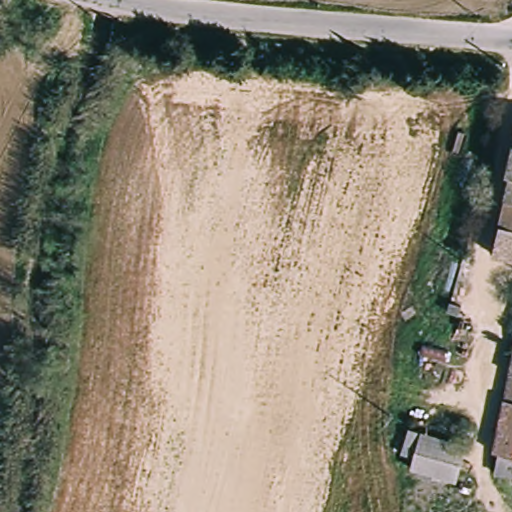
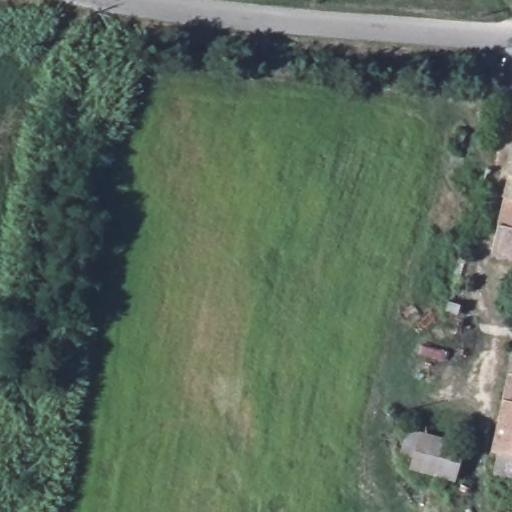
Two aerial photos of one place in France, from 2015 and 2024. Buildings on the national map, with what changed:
unchanged [(491,254),(508,173),(503,172),(512,122),(512,259),(491,254)]
unchanged [(512,348),(512,461),(487,454),(512,348)]
unchanged [(454,484),(407,471),(418,432),(465,442),(454,484)]

